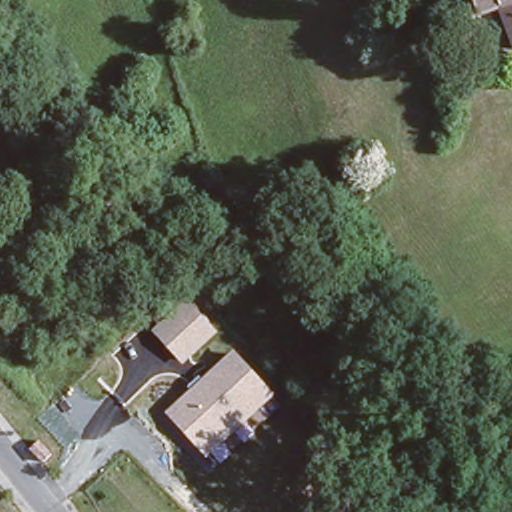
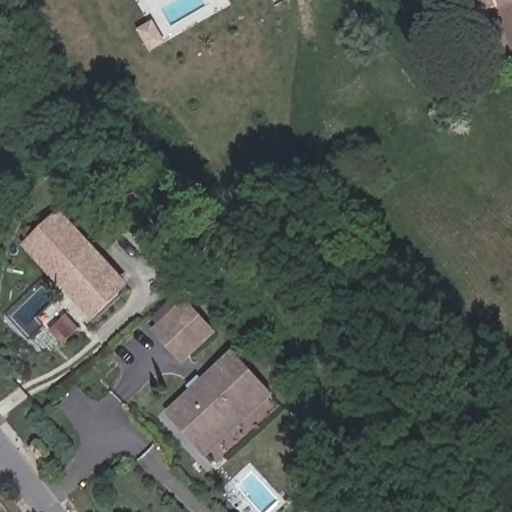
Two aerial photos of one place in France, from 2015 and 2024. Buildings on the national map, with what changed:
unchanged [(512,40),(508,41),(496,3),(474,9),(472,0),(512,0),(512,40)]
new [(91,322),(22,245),(60,210),(129,286),(91,322)]
unchanged [(185,364),(150,329),(186,297),(218,332),(185,364)]
unchanged [(269,402),(275,409),(254,429),(256,433),(244,444),(234,433),(223,445),(231,454),(218,464),(212,457),(209,459),(165,411),(189,389),(187,386),(199,376),(202,380),(235,352),(275,394),(269,402)]

